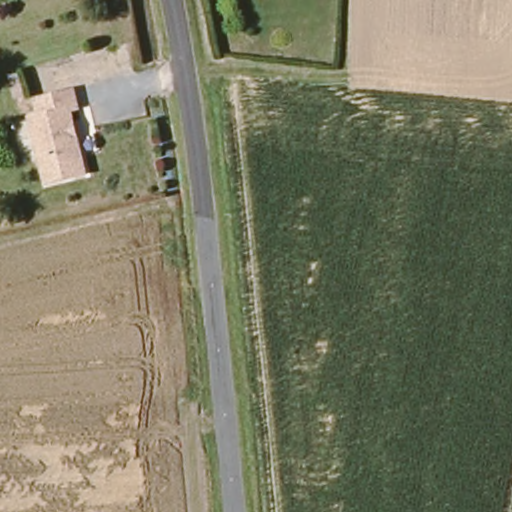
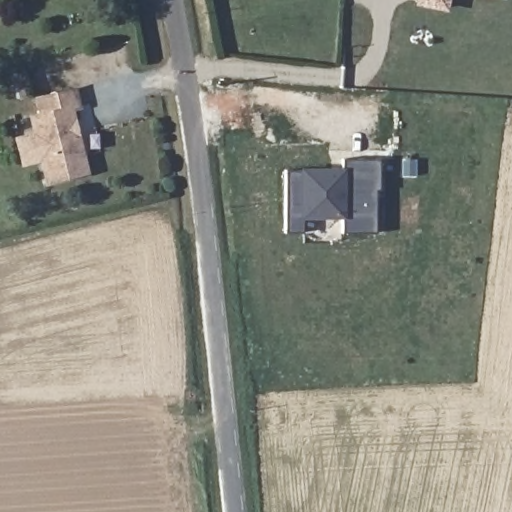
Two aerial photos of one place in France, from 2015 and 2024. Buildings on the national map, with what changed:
new [(418,4),(419,0),(447,0),(446,9),(418,4)]
unchanged [(74,95),(77,111),(71,113),(73,124),(69,130),(71,140),(77,142),(85,179),(48,188),(32,123),(41,120),(38,104),(74,95)]
new [(286,233),(287,170),(333,170),(333,176),(343,176),(343,159),(382,159),(381,190),(377,190),(377,233),(343,233),(304,233),(286,233)]

